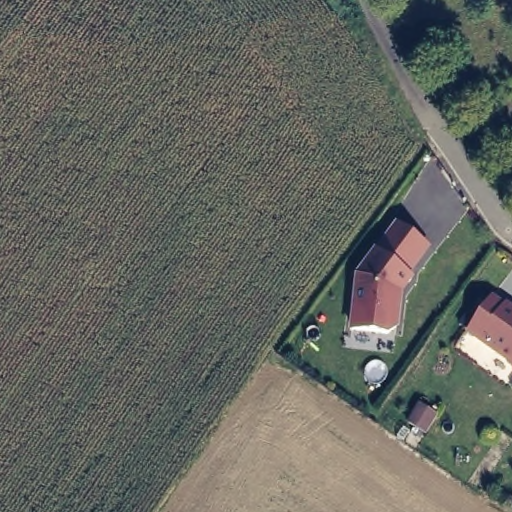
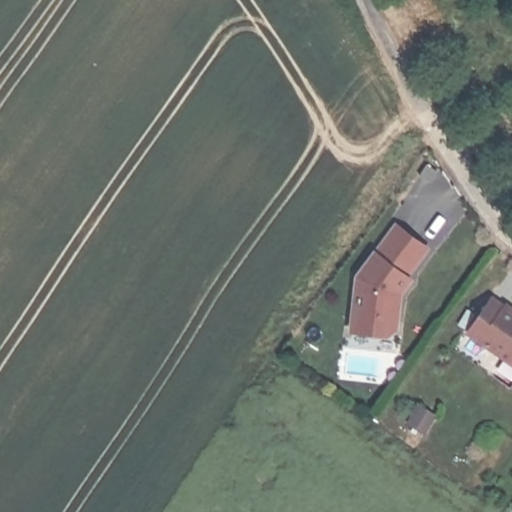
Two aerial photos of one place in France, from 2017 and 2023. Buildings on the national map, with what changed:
unchanged [(353,331),(356,276),(377,249),(379,250),(398,223),(430,249),(412,278),(414,279),(402,295),(401,329),(390,336),(353,331)]
unchanged [(512,307),(512,364),(470,333),(493,294),(512,307)]

